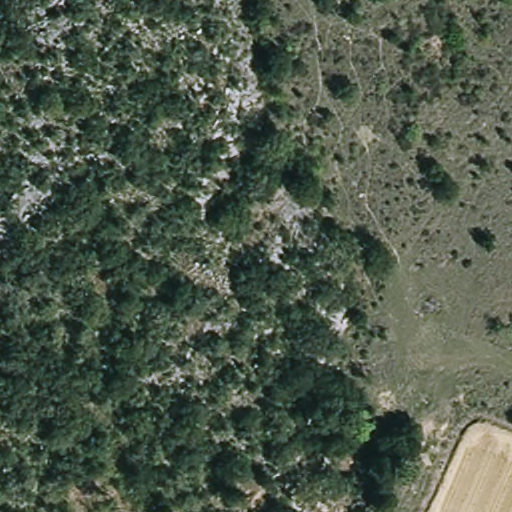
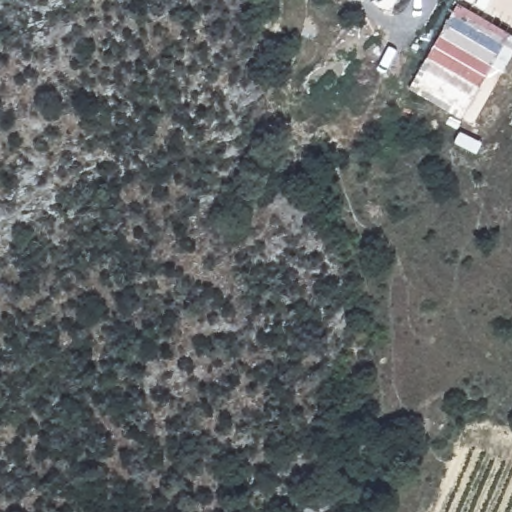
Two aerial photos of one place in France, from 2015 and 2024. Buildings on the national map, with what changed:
new [(483,87),(463,120),(410,89),(459,4),(512,35),(512,58),(492,92),(483,87)]

